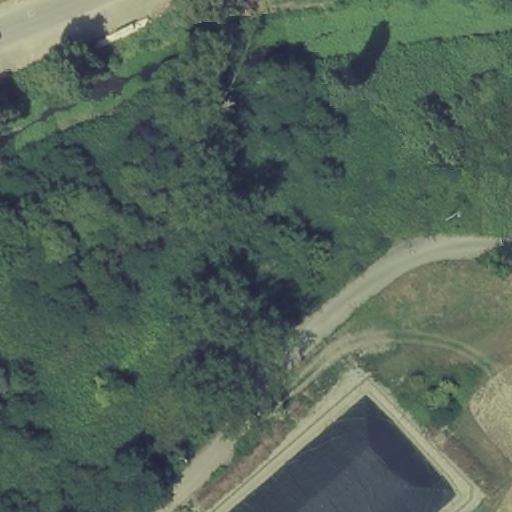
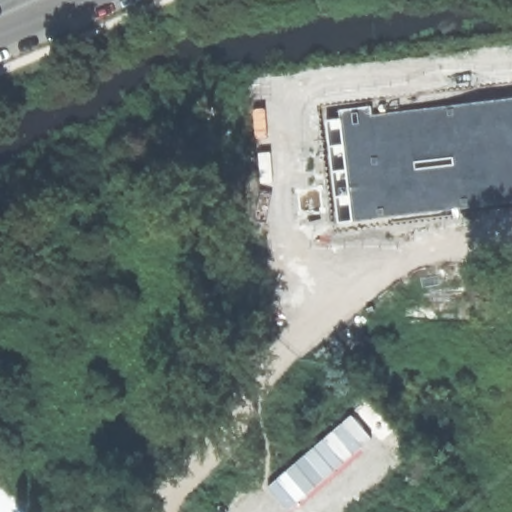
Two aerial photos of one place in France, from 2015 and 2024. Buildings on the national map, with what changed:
new [(372,115),(512,99),(512,206),(337,224),(326,120),(339,119),(338,109),(371,106),(372,115)]

